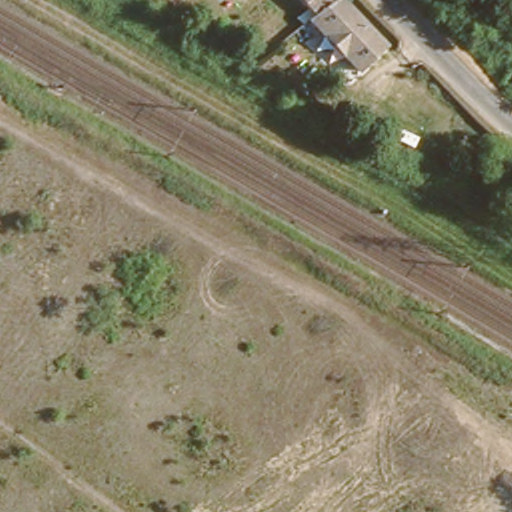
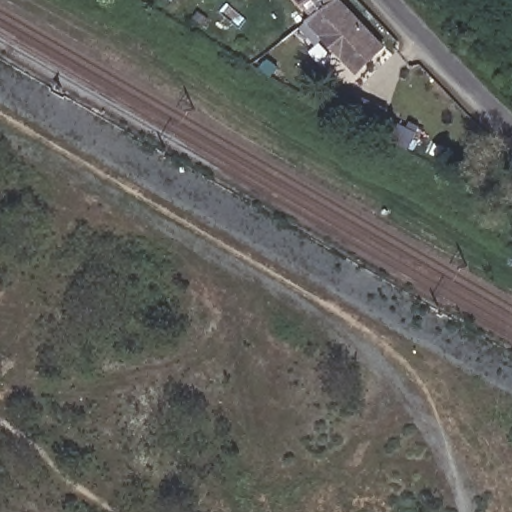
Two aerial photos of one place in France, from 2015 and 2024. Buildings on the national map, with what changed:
unchanged [(306,9),(304,7),(308,2),(307,0),(316,0),(306,9)]
unchanged [(353,60),(306,9),(316,0),(351,0),(382,34),(353,60)]
unchanged [(500,88),(491,81),(498,72),(507,79),(500,88)]

